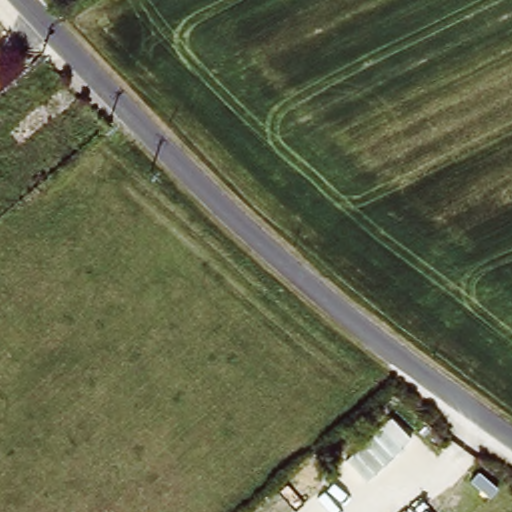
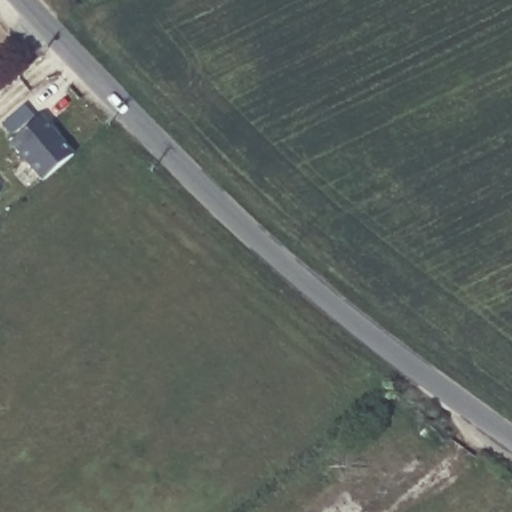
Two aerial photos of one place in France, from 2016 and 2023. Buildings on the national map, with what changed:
new [(42,181),(10,142),(17,137),(2,124),(24,104),(36,120),(41,116),(72,155),(42,181)]

